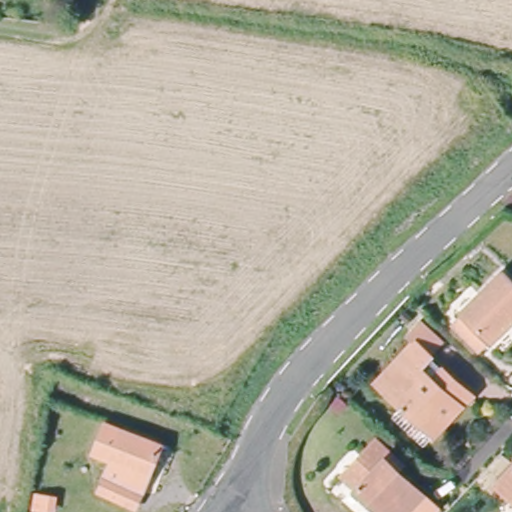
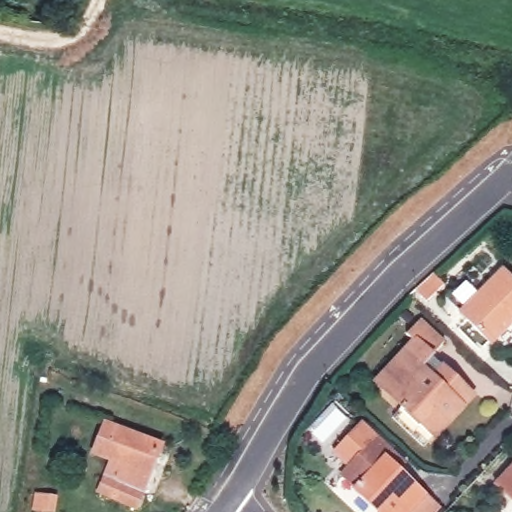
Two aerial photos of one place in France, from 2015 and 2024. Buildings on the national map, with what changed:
unchanged [(450,318),(500,270),(512,283),(512,318),(511,318),(504,325),(479,349),(450,318)]
unchanged [(424,427),(407,410),(409,407),(382,381),(418,343),(411,336),(425,320),(447,342),(434,357),(451,374),(474,395),(443,429),(436,437),(424,427)]
unchanged [(164,440),(140,506),(104,492),(117,458),(97,450),(108,421),(164,440)]
unchanged [(384,512),(345,474),(377,441),(390,454),(402,466),(399,471),(422,494),(407,512),(384,512)]
unchanged [(512,468),(512,497),(497,483),(512,468)]
unchanged [(442,512),(409,512),(428,489),(446,507),(442,512)]

